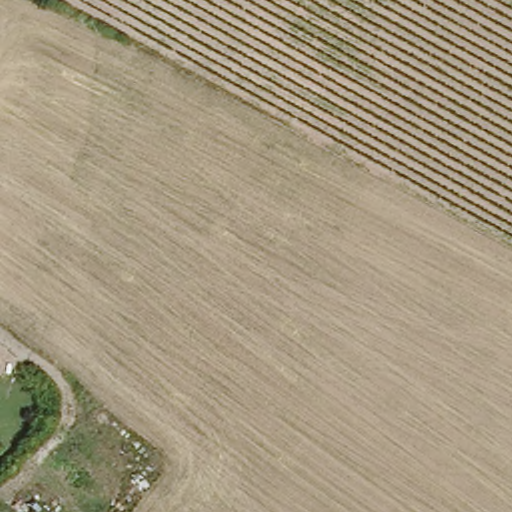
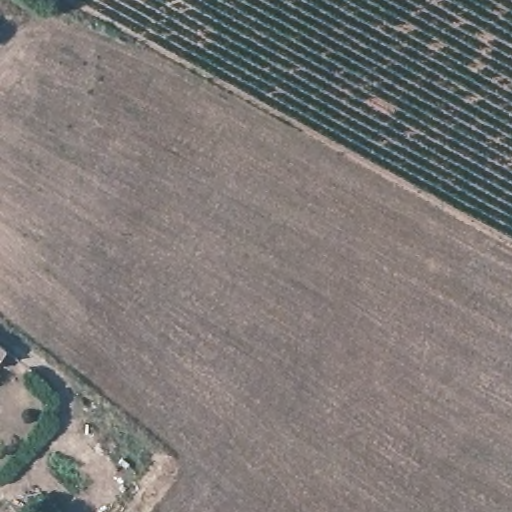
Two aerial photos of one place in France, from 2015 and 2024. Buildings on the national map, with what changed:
unchanged [(0,356),(0,341),(7,346),(0,356)]

